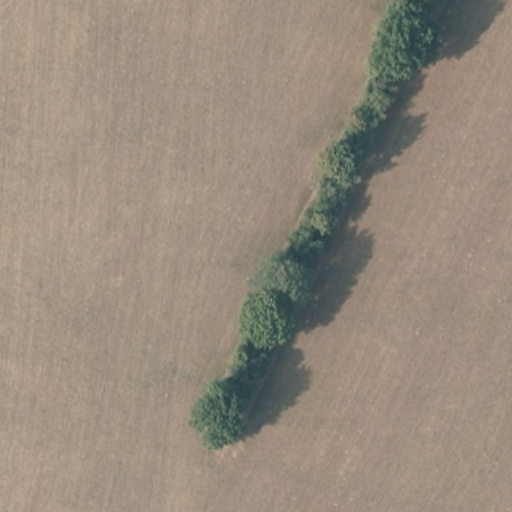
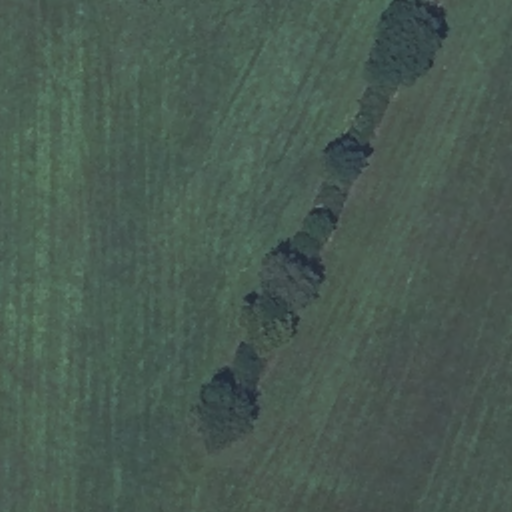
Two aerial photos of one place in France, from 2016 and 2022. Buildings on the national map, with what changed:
[]

